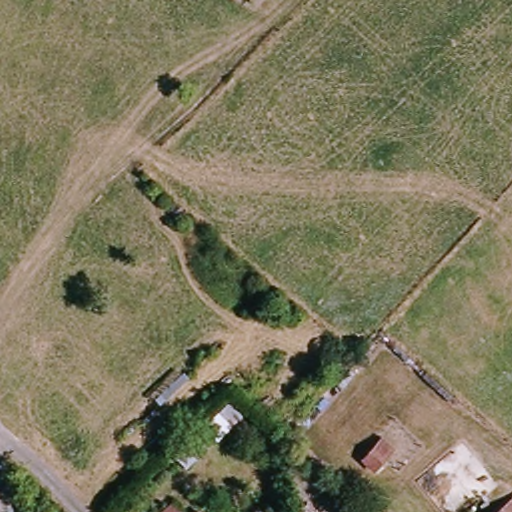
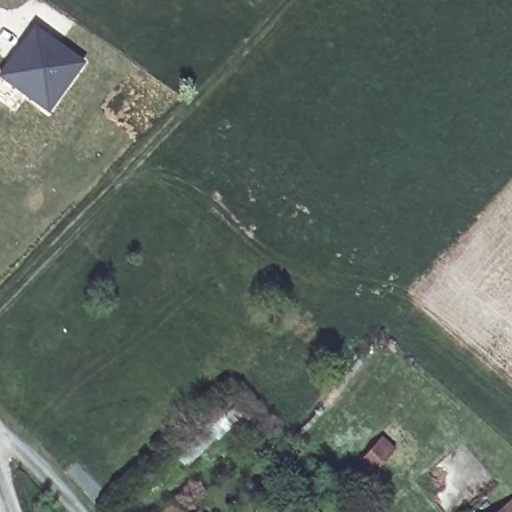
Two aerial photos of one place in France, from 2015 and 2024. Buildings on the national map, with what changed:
new [(34,22),(87,61),(49,113),(0,76),(0,70),(34,22)]
unchanged [(177,512),(170,512),(174,508),(177,512)]
unchanged [(512,512),(509,512),(512,510),(512,512)]

